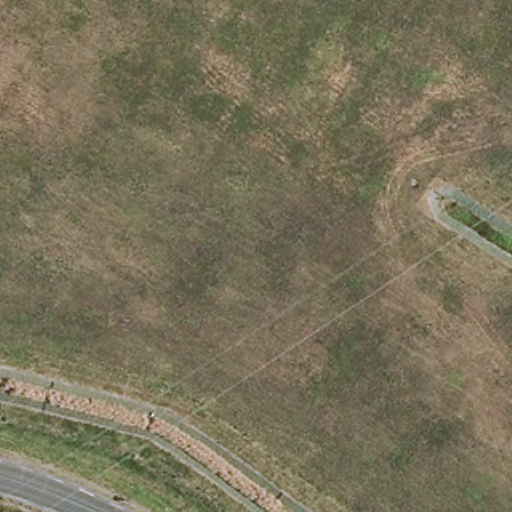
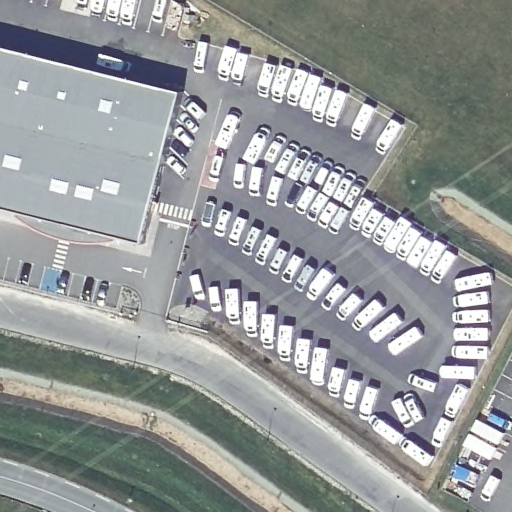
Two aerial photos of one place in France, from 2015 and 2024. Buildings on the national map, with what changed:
new [(0,206),(0,47),(183,93),(144,241),(118,235),(116,240),(95,242),(85,243),(73,240),(60,238),(47,233),(34,225),(22,217),(23,212),(0,206)]

